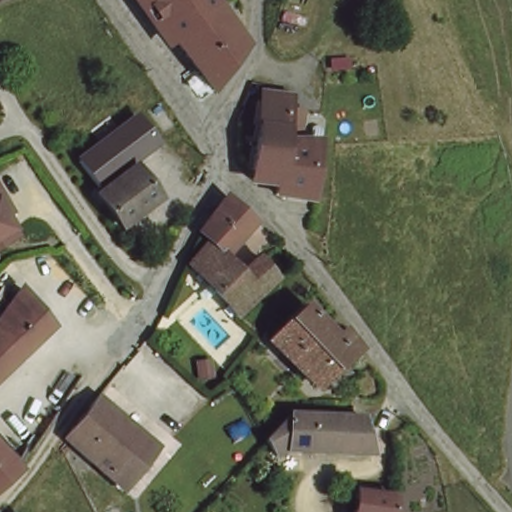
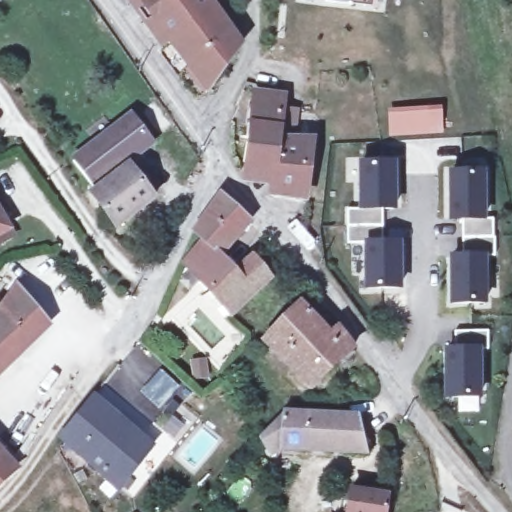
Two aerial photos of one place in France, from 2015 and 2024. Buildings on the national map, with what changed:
unchanged [(210,2),(237,40),(202,82),(141,0),(208,0),(210,2)]
new [(371,6),(310,0),(372,0),(371,6)]
unchanged [(241,172),(242,161),(255,81),(282,85),(278,129),(307,135),(301,189),(266,186),(267,179),(246,177),(241,172)]
unchanged [(111,218),(86,186),(93,180),(90,175),(86,178),(83,174),(68,154),(127,110),(145,133),(135,141),(119,153),(122,157),(147,190),(111,218)]
new [(433,113),(434,128),(389,130),(387,115),(433,113)]
new [(357,210),(357,165),(389,164),(390,210),(378,210),(379,245),(395,244),(396,289),(363,289),(362,245),(344,245),(343,211),(357,210)]
new [(478,173),(479,220),(493,220),(494,257),(480,257),(480,304),(449,304),(448,258),(459,258),(458,220),(447,220),(447,174),(478,173)]
unchanged [(187,270),(206,247),(194,235),(219,199),(243,223),(211,251),(227,269),(207,292),(187,270)]
unchanged [(0,236),(0,219),(7,232),(0,236)]
unchanged [(227,269),(230,266),(249,254),(266,275),(227,313),(207,292),(227,269)]
unchanged [(0,296),(7,302),(21,289),(50,326),(13,357),(0,343),(0,296)]
unchanged [(301,342),(327,368),(307,384),(259,339),(295,301),(316,325),(301,342)]
unchanged [(325,314),(350,348),(327,368),(301,342),(316,325),(325,314)]
new [(451,351),(451,333),(484,332),(484,351),(475,351),(476,397),(444,398),(443,351),(451,351)]
unchanged [(0,369),(0,343),(13,357),(4,365),(0,369)]
unchanged [(202,353),(207,373),(192,378),(187,357),(202,353)]
unchanged [(149,442),(117,483),(58,435),(91,394),(149,442)]
unchanged [(356,411),(364,448),(277,442),(265,450),(262,445),(255,433),(281,408),(356,411)]
unchanged [(0,479),(0,453),(12,466),(0,479)]
unchanged [(382,494),(380,512),(345,512),(348,491),(382,494)]

